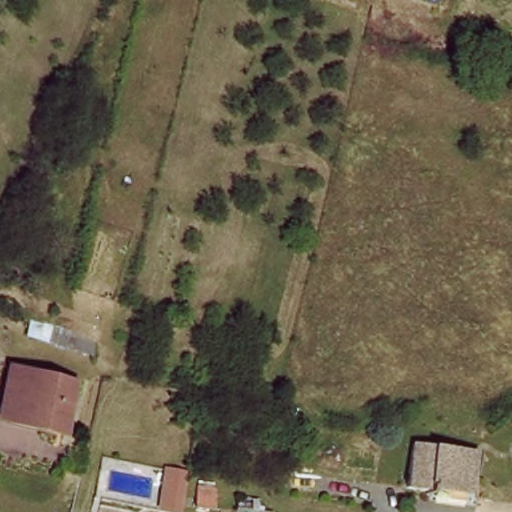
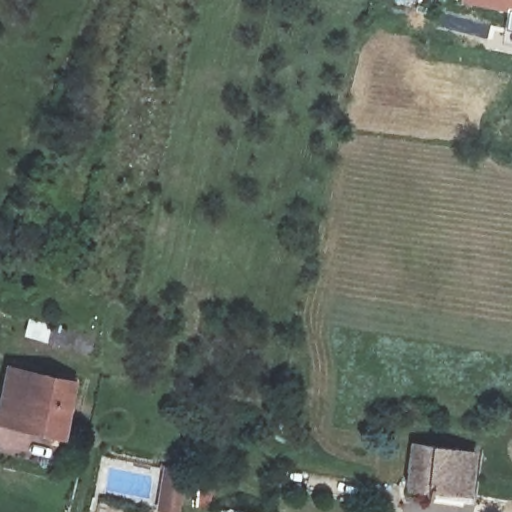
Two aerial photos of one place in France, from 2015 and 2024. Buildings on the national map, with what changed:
new [(461,2),(461,0),(512,0),(512,12),(461,2)]
unchanged [(0,425),(0,406),(8,375),(69,391),(55,439),(0,425)]
unchanged [(400,495),(406,452),(469,461),(464,505),(400,495)]

